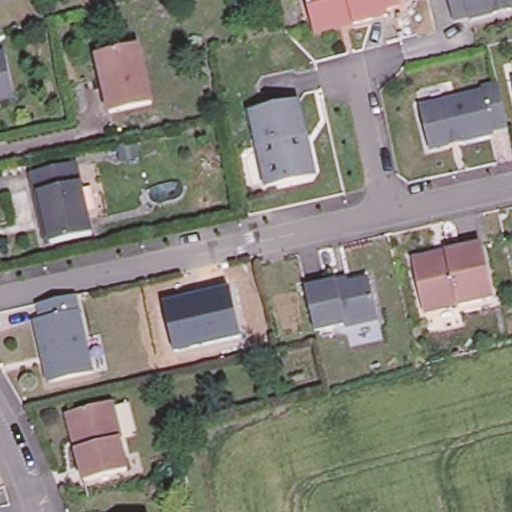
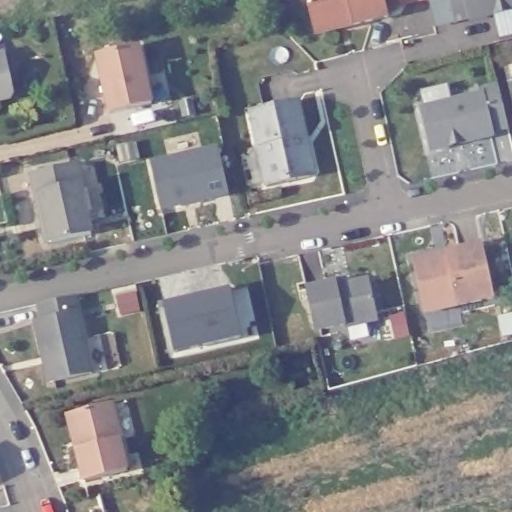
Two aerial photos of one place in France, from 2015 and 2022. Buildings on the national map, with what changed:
unchanged [(398,0),(400,9),(386,12),(387,20),(353,29),(315,37),(313,31),(306,0),(398,0)]
unchanged [(512,0),(512,14),(470,25),(469,22),(454,25),(448,0),(512,0)]
unchanged [(110,115),(102,79),(97,60),(102,59),(140,49),(153,105),(110,115)]
unchanged [(8,102),(0,103),(0,58),(4,57),(13,96),(8,102)]
unchanged [(508,130),(493,134),(492,139),(430,153),(421,111),(485,96),(483,91),(498,87),(508,130)]
unchanged [(314,171),(310,177),(267,187),(251,115),(300,104),(314,171)]
new [(229,196),(160,211),(150,160),(217,145),(229,196)]
unchanged [(40,214),(33,176),(77,167),(92,236),(52,246),(48,247),(40,214)]
unchanged [(430,258),(436,262),(447,260),(448,254),(483,247),(493,300),(425,315),(412,262),(430,258)]
unchanged [(335,283),(338,289),(369,282),(377,321),(345,329),(342,326),(314,332),(305,290),(335,283)]
unchanged [(242,337),(172,354),(161,301),(230,286),(242,337)]
unchanged [(45,359),(36,325),(43,323),(40,306),(77,297),(80,315),(85,341),(94,374),(57,383),(50,385),(45,359)]
unchanged [(114,407),(125,441),(120,444),(128,472),(87,483),(79,450),(70,417),(75,415),(113,405),(114,407)]

